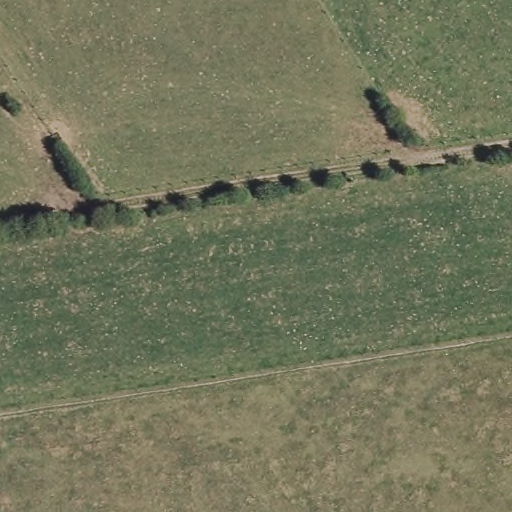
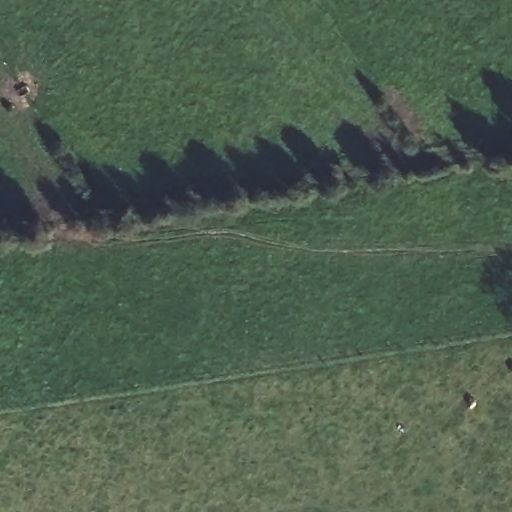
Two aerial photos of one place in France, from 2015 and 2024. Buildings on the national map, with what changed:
[]

